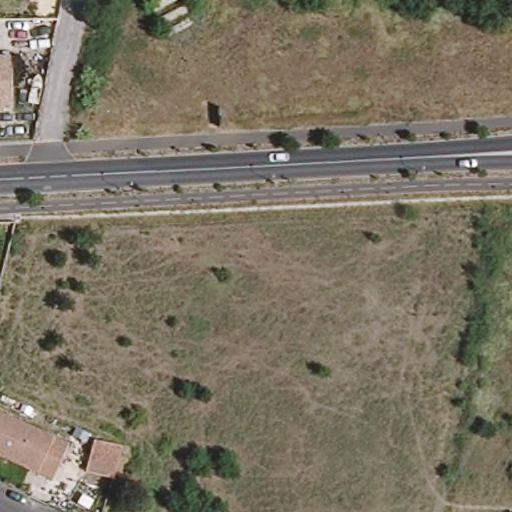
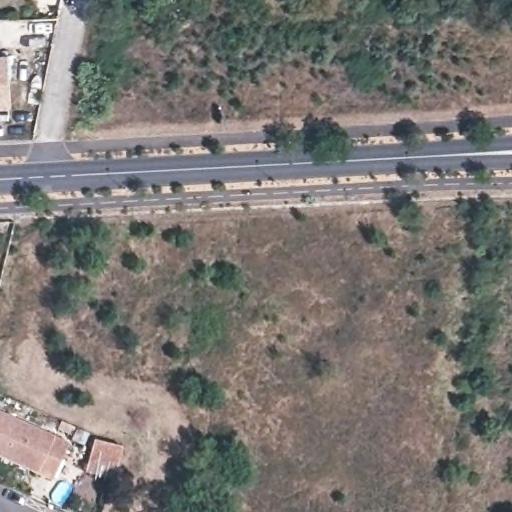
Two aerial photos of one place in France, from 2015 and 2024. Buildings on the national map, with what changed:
unchanged [(11,107),(0,108),(0,55),(9,55),(11,107)]
unchanged [(0,447),(0,414),(3,406),(72,438),(55,473),(0,447)]
unchanged [(113,476),(88,470),(96,440),(122,447),(113,476)]

